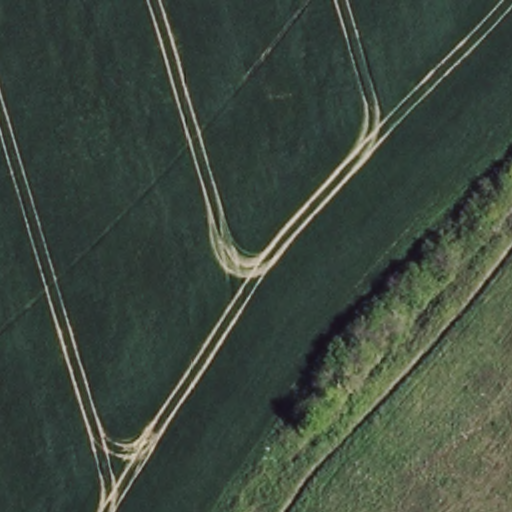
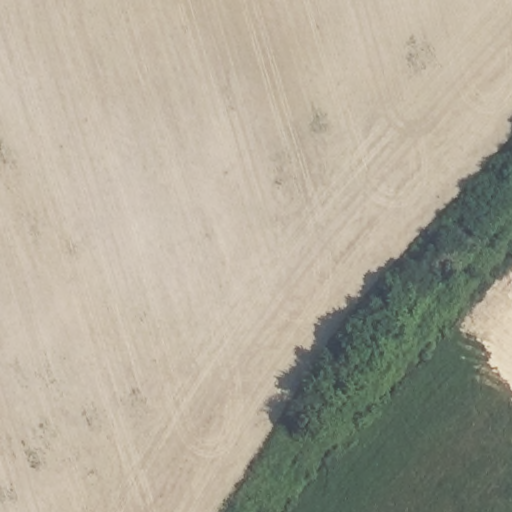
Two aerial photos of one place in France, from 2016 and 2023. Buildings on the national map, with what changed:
[]

